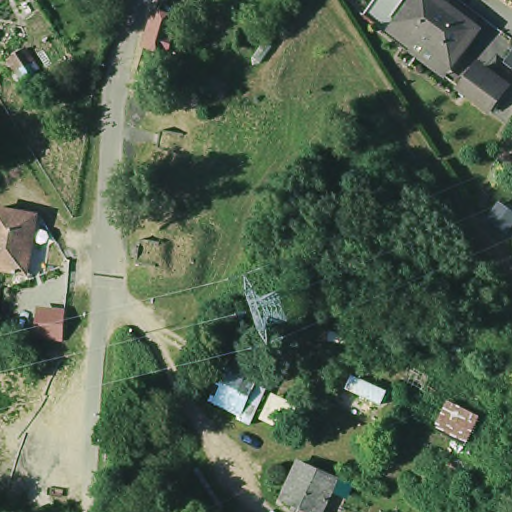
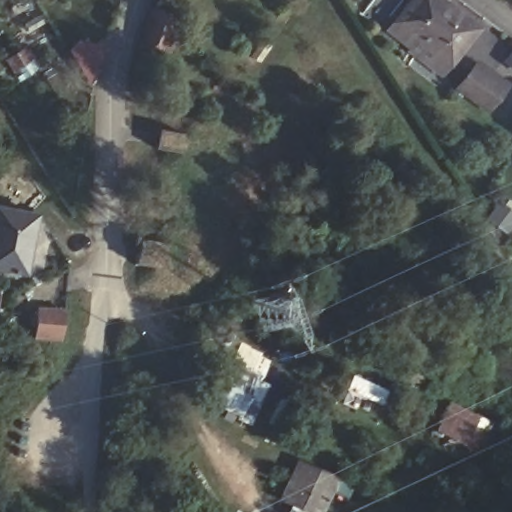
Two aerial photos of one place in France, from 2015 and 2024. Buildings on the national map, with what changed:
unchanged [(378,0),(404,0),(405,1),(387,25),(369,12),(378,0)]
unchanged [(401,37),(394,32),(399,25),(418,0),(439,0),(444,3),(480,31),(454,66),(429,46),(423,54),(415,48),(401,37)]
unchanged [(500,55),(509,44),(512,47),(512,63),(500,55)]
unchanged [(462,91),(478,70),(505,91),(491,111),(462,91)]
unchanged [(21,272),(0,268),(0,211),(31,217),(21,272)]
unchanged [(60,338),(38,333),(40,318),(64,324),(63,326),(60,338)]
unchanged [(291,403),(274,435),(208,407),(223,373),(291,403)]
unchanged [(370,388),(358,419),(329,410),(339,381),(370,388)]
unchanged [(283,503),(299,464),(333,480),(326,494),(336,498),(331,506),(323,502),(318,512),(303,512),(283,503)]

